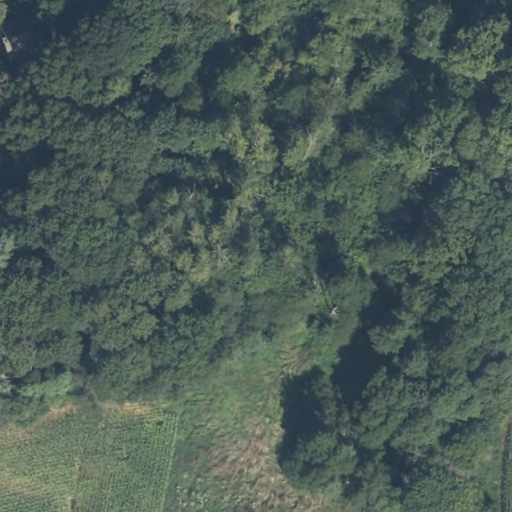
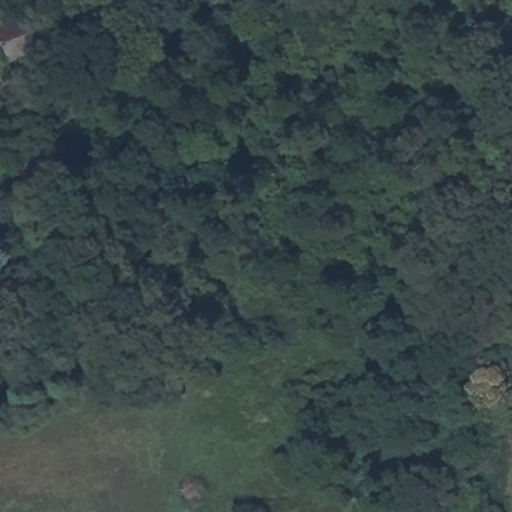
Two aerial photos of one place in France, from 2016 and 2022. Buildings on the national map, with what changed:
unchanged [(34,49),(7,60),(0,45),(0,31),(20,21),(34,49)]
unchanged [(15,150),(42,146),(47,172),(19,178),(15,150)]

